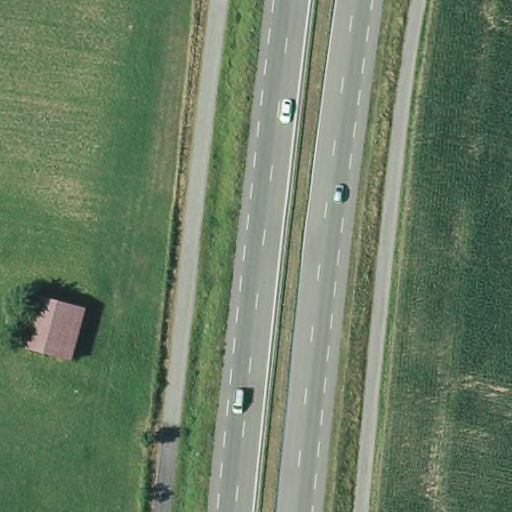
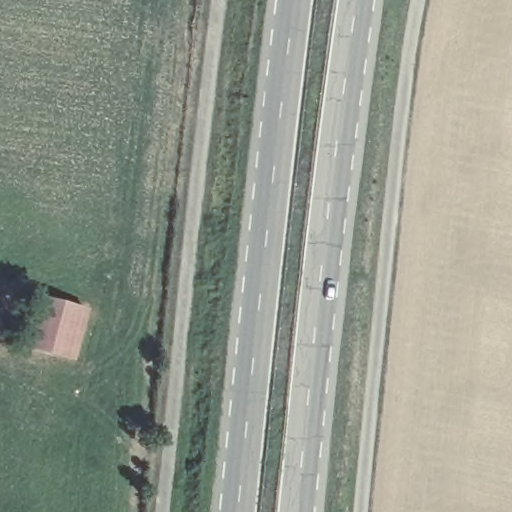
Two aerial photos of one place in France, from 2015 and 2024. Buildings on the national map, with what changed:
unchanged [(37,293),(81,305),(67,358),(23,347),(37,293)]

